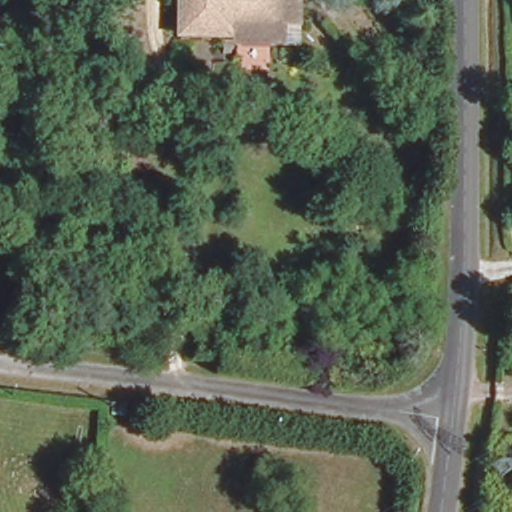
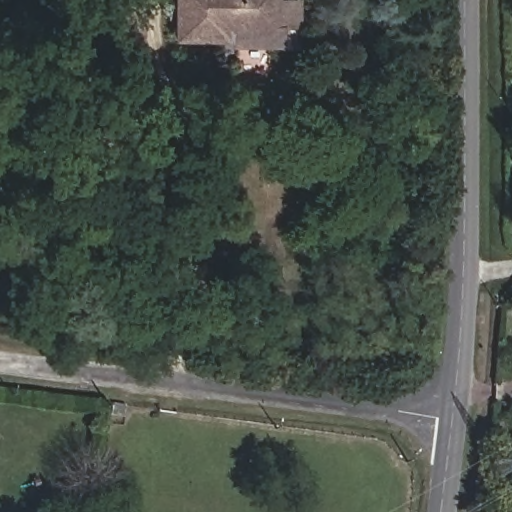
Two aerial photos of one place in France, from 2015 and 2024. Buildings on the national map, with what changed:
unchanged [(219,32),(177,26),(179,0),(274,0),(272,26),(221,19),(219,32)]

